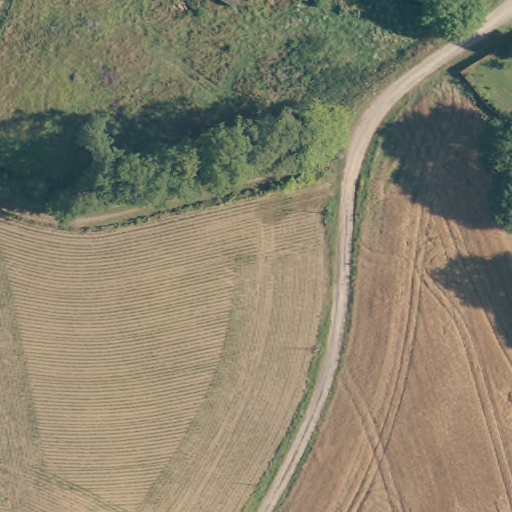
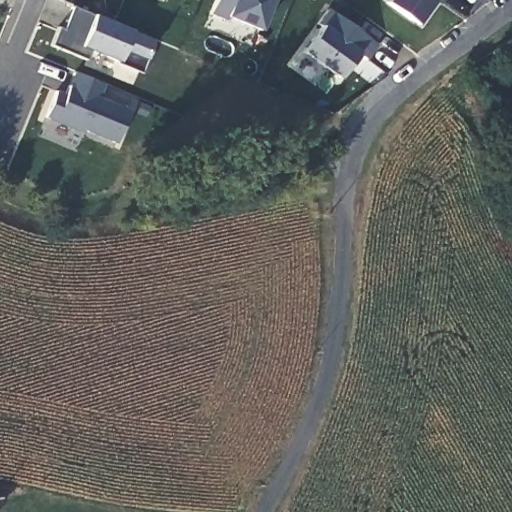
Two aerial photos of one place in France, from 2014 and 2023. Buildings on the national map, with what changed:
new [(224,19),(209,14),(215,0),(272,0),(259,31),(225,16),(224,19)]
demolished [(243,9),(226,0),(247,0),(243,9)]
new [(416,25),(386,2),(387,0),(434,0),(416,25)]
new [(71,7),(152,39),(143,67),(90,50),(86,59),(50,46),(58,27),(63,29),(71,7)]
new [(338,78),(302,52),(322,25),(318,22),(328,9),(378,44),(366,60),(361,56),(354,64),(350,61),(338,78)]
new [(105,84),(99,98),(130,110),(116,143),(84,131),(83,133),(44,118),(56,90),(65,93),(74,72),(105,84)]

